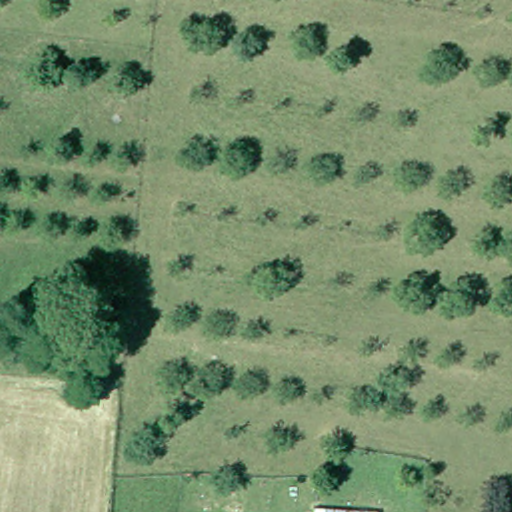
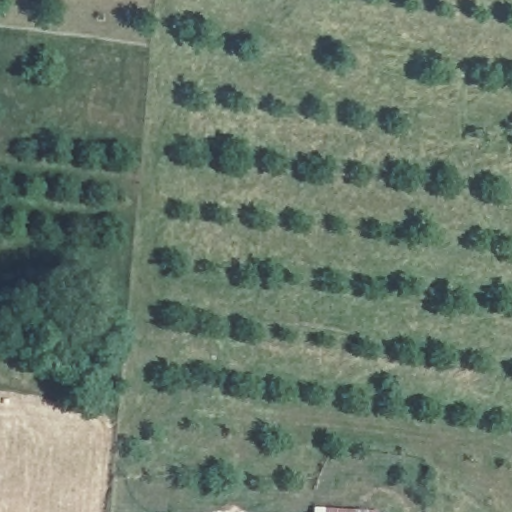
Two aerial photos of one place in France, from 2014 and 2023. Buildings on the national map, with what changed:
unchanged [(323,510),(344,512),(323,512),(323,510)]

